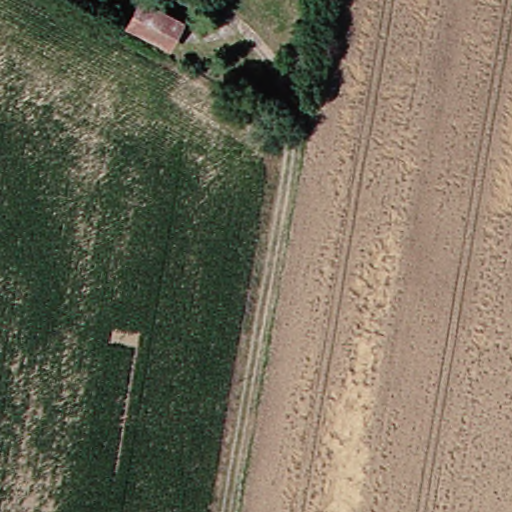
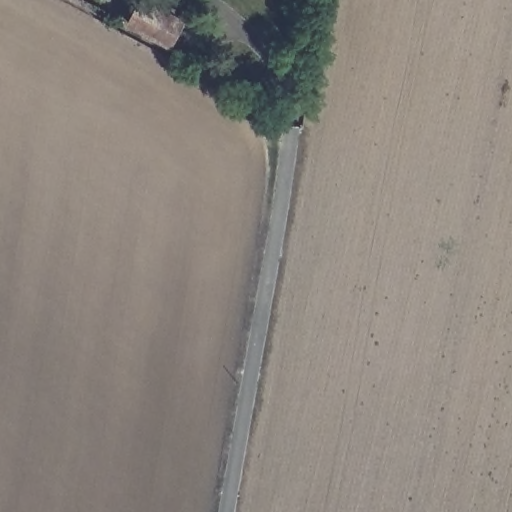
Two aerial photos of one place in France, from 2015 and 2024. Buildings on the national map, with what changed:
unchanged [(171,21),(159,47),(120,25),(131,1),(171,21)]

